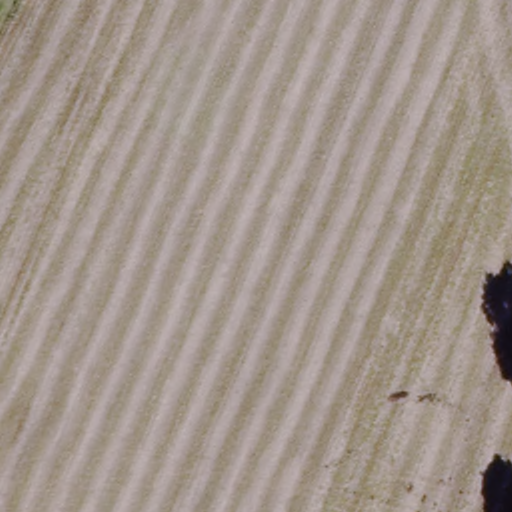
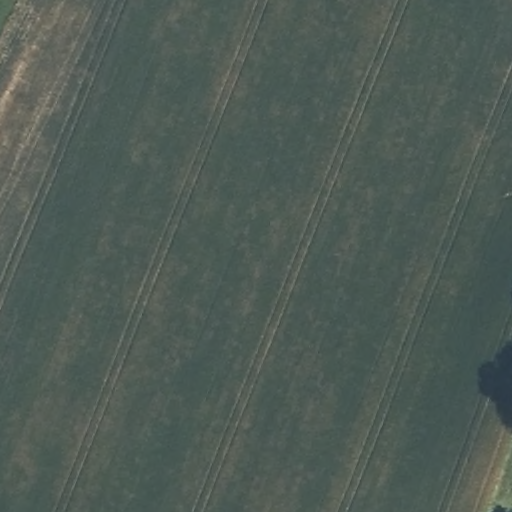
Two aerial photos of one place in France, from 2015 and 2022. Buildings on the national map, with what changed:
[]

